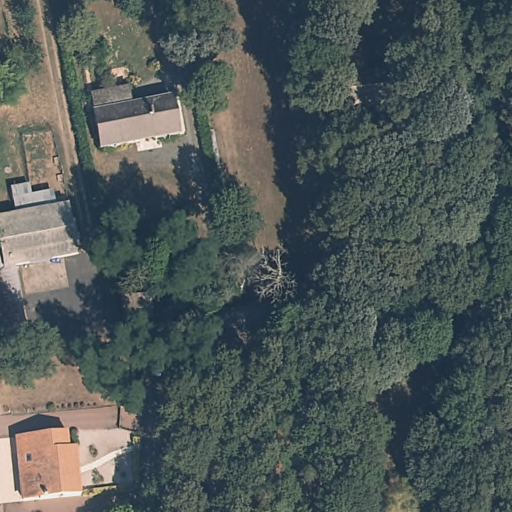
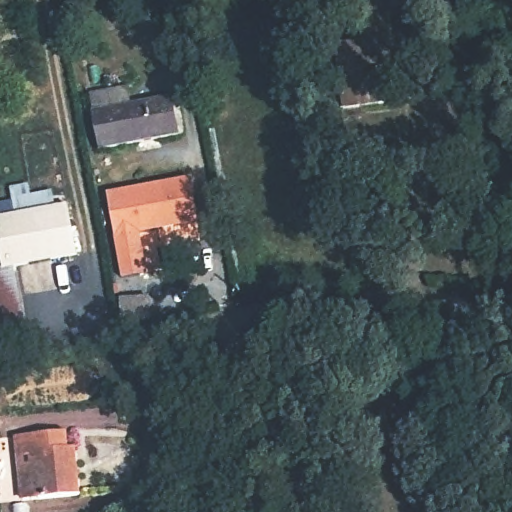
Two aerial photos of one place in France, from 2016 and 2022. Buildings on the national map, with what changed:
unchanged [(388,75),(394,104),(338,114),(333,84),(388,75)]
unchanged [(171,87),(178,124),(100,139),(93,104),(171,87)]
new [(192,176),(200,223),(142,233),(149,273),(123,277),(106,192),(192,176)]
new [(32,184),(34,194),(54,190),(57,205),(14,212),(10,187),(32,184)]
unchanged [(69,203),(78,254),(12,264),(3,214),(69,203)]
unchanged [(12,264),(22,329),(0,332),(0,214),(3,214),(12,264)]
unchanged [(154,295),(154,322),(121,322),(121,296),(154,295)]
unchanged [(77,493),(17,492),(16,431),(68,430),(68,445),(76,446),(77,493)]

